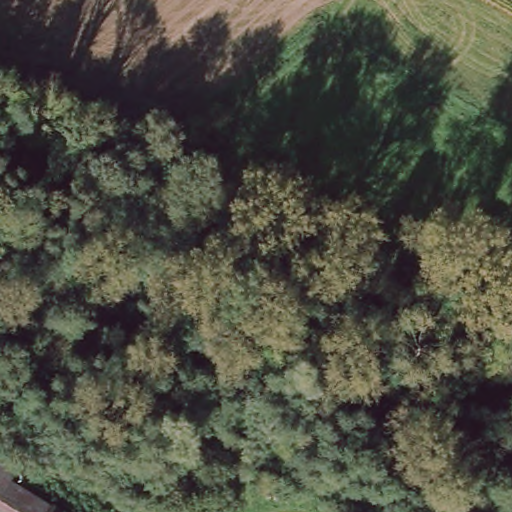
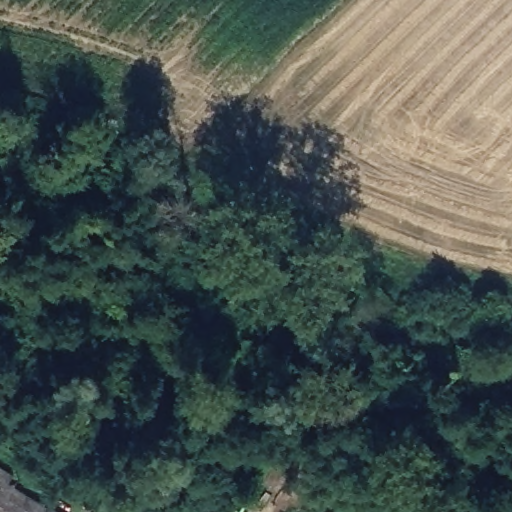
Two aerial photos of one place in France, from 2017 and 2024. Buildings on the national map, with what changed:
unchanged [(0,501),(0,465),(19,476),(13,486),(56,511),(59,512),(18,512),(0,501)]

